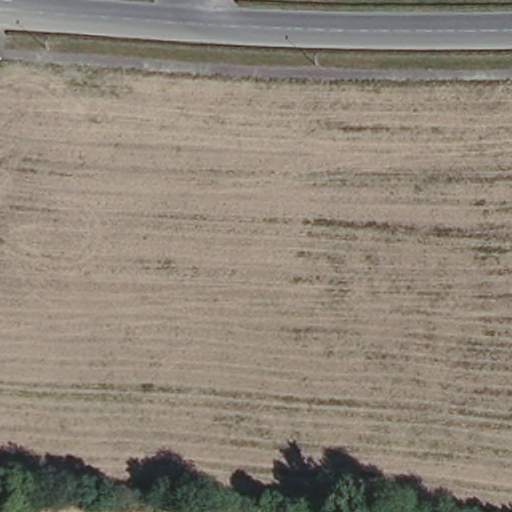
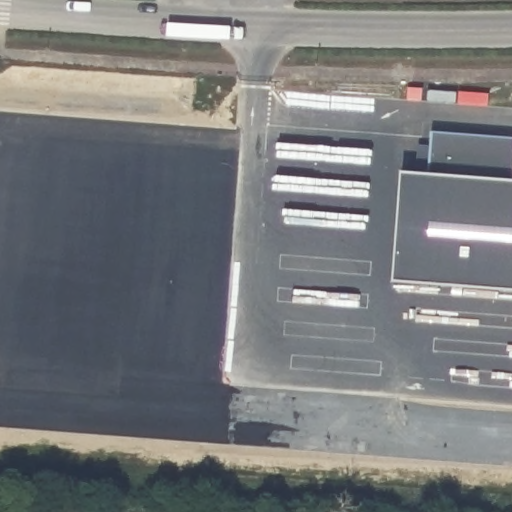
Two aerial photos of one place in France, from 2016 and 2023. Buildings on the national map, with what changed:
new [(512,182),(512,293),(395,285),(403,172),(417,172),(420,147),(431,148),(432,134),(512,139),(512,176),(512,182)]

